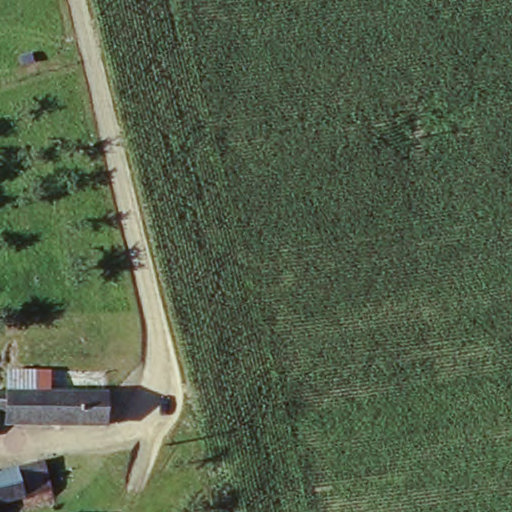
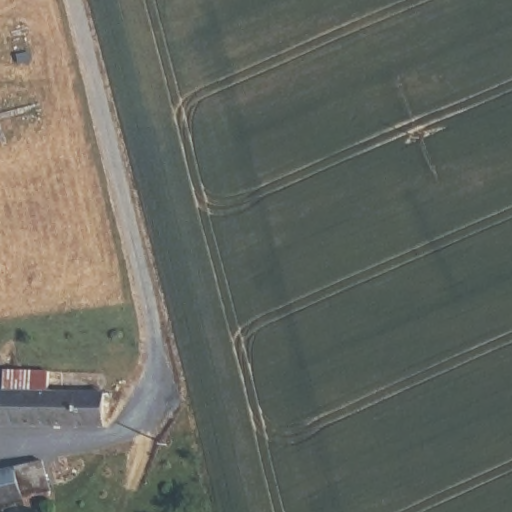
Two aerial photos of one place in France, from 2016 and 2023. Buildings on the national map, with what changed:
unchanged [(112,417),(10,416),(9,404),(0,403),(0,382),(111,385),(112,406),(112,417)]
unchanged [(23,492),(0,498),(0,465),(41,456),(50,492),(27,499),(23,492)]

